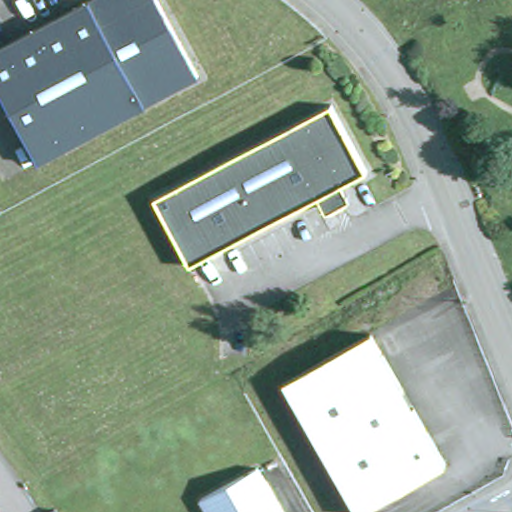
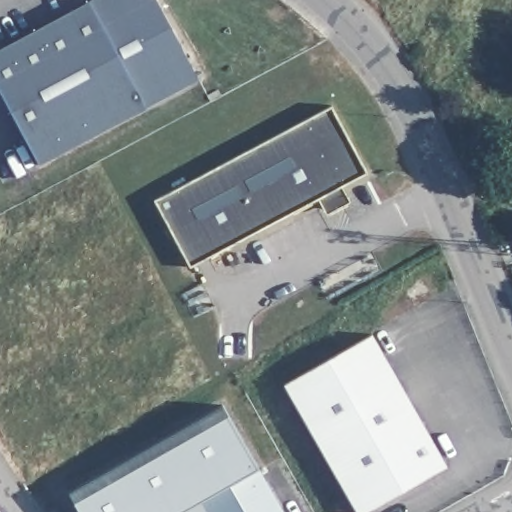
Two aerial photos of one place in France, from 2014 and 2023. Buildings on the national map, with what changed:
unchanged [(0,44),(82,0),(158,0),(197,75),(34,162),(0,97),(0,44)]
unchanged [(187,270),(150,200),(331,103),(366,173),(187,270)]
unchanged [(372,335),(448,466),(371,512),(357,512),(283,386),(372,335)]
new [(222,406),(258,464),(197,497),(205,512),(81,512),(68,491),(222,406)]
unchanged [(258,464),(284,512),(205,512),(197,497),(258,464)]

